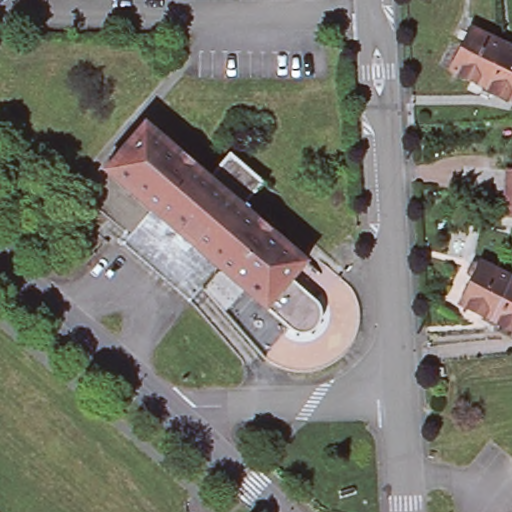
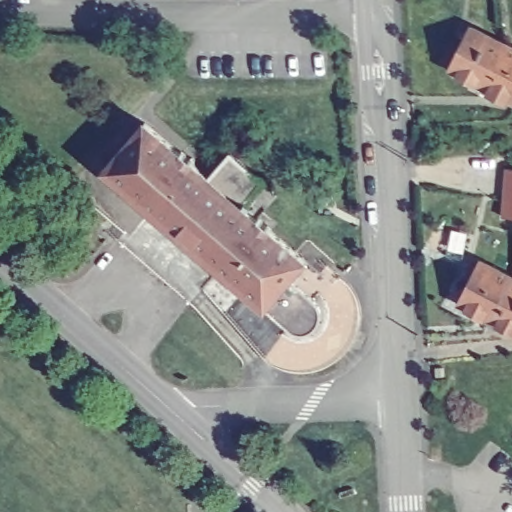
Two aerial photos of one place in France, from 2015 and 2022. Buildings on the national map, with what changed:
unchanged [(450,70),(470,25),(505,42),(483,87),(450,70)]
unchanged [(512,46),(512,100),(483,87),(505,42),(512,46)]
unchanged [(306,74),(302,78),(298,84),(290,78),(284,73),(292,63),(297,67),(306,74)]
unchanged [(103,164),(143,117),(180,147),(181,146),(193,157),(192,158),(207,171),(228,147),(262,176),(245,196),(248,200),(245,204),(256,213),(257,211),(270,223),(269,225),(304,254),(288,272),(314,293),(320,313),(308,326),(290,324),(150,204),(103,164)]
unchanged [(510,180),(512,153),(512,203),(508,202),(510,180)]
unchanged [(290,324),(308,326),(320,313),(314,293),(288,272),(304,254),(320,269),(327,262),(340,273),(348,280),(360,311),(310,366),(262,353),(201,282),(188,296),(121,238),(150,204),(290,324)]
unchanged [(457,304),(479,260),(512,276),(512,279),(493,321),(457,304)]
unchanged [(512,279),(512,331),(493,321),(512,279)]

